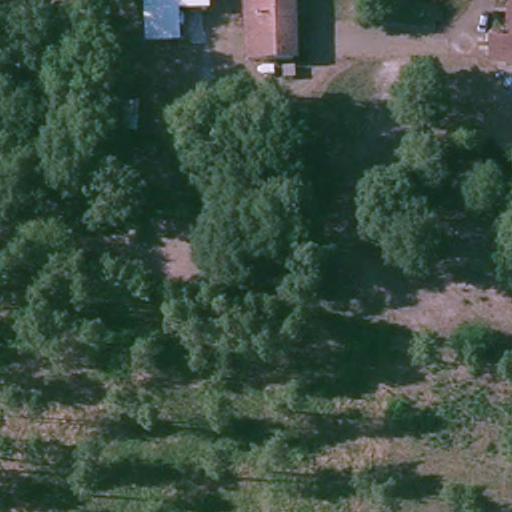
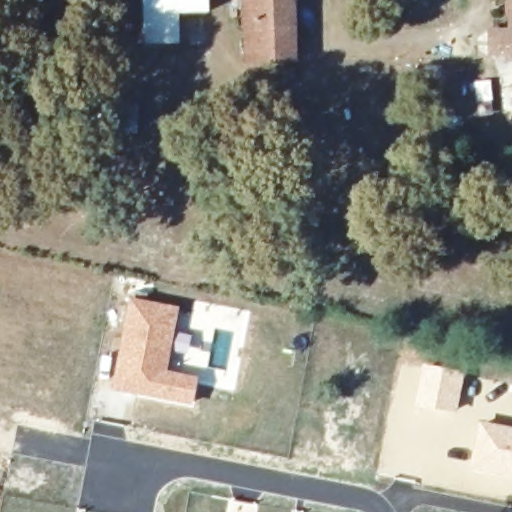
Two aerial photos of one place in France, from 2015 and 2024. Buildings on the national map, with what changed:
new [(179,14),(179,44),(146,45),(143,0),(208,0),(208,13),(179,14)]
unchanged [(242,62),(242,0),(291,0),(291,62),(242,62)]
unchanged [(503,0),(512,0),(512,61),(511,61),(511,57),(484,57),(484,37),(503,37),(503,0)]
unchanged [(275,78),(277,75),(277,68),(288,68),(288,78),(275,78)]
new [(131,305),(165,311),(174,312),(171,332),(162,375),(195,382),(192,406),(129,395),(115,392),(119,375),(131,305)]
new [(423,372),(460,377),(453,414),(417,407),(423,372)]
new [(512,433),(512,476),(473,468),(480,427),(512,433)]

